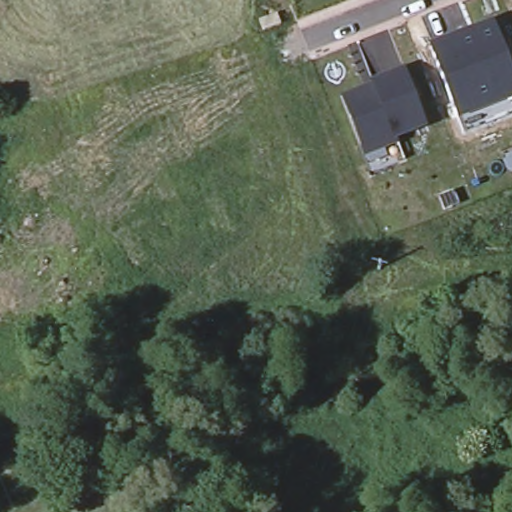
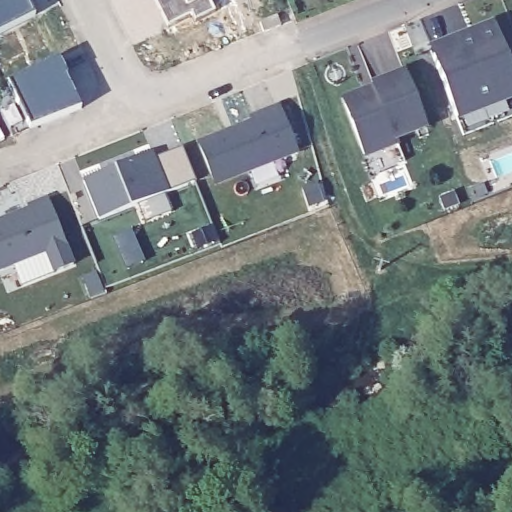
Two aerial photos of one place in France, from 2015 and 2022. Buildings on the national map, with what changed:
new [(0,33),(0,0),(25,0),(33,16),(0,33)]
new [(195,19),(191,13),(167,24),(157,0),(210,0),(215,9),(195,19)]
unchanged [(261,29),(257,19),(275,13),(278,23),(261,29)]
unchanged [(495,29),(512,72),(512,92),(455,114),(431,54),(495,29)]
new [(8,83),(57,59),(65,76),(63,77),(78,109),(29,128),(8,83)]
unchanged [(359,144),(341,96),(362,89),(363,90),(373,86),(371,82),(403,69),(424,123),(393,135),(395,140),(378,147),(362,153),(359,144)]
new [(214,187),(196,141),(250,119),(248,115),(278,104),(298,154),(214,187)]
new [(195,182),(97,220),(82,180),(152,151),(155,158),(181,148),(195,182)]
new [(75,265),(52,274),(45,254),(0,272),(0,219),(27,208),(25,204),(47,197),(75,265)]

